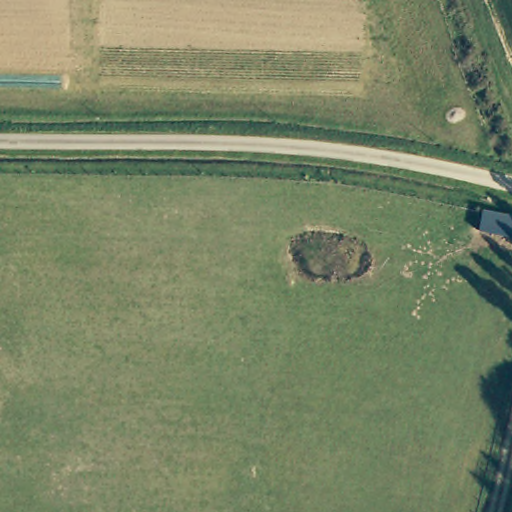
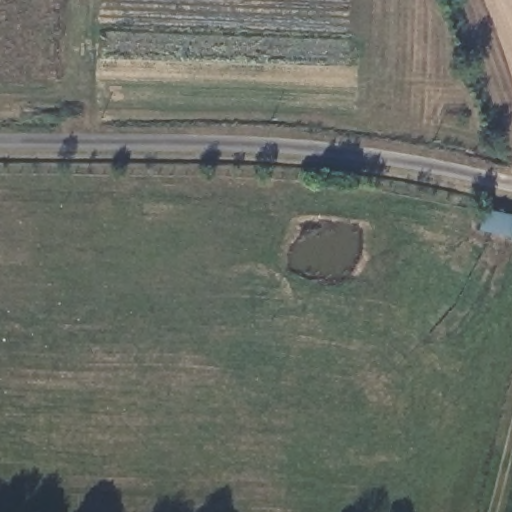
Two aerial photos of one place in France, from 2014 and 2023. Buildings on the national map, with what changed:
unchanged [(481,207),(512,214),(512,237),(476,229),(481,207)]

